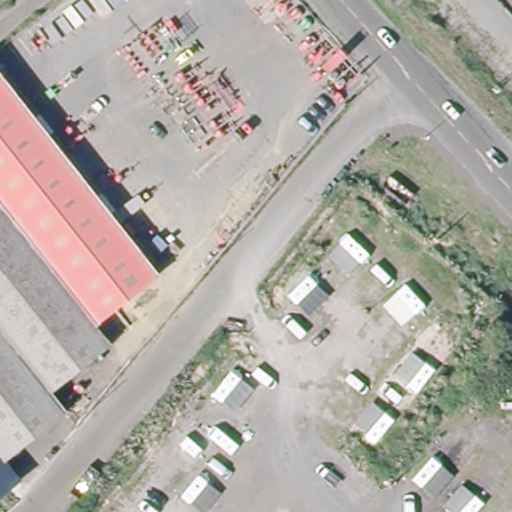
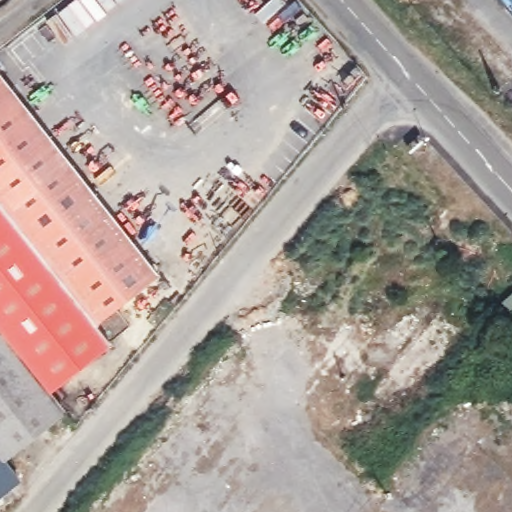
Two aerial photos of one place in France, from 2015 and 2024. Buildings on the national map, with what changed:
unchanged [(88,326),(0,221),(0,98),(149,278),(88,326)]
unchanged [(104,346),(42,395),(0,344),(0,221),(88,326),(104,346)]
unchanged [(0,344),(42,395),(58,414),(0,462),(0,344)]
unchanged [(0,495),(0,465),(15,483),(0,495)]

